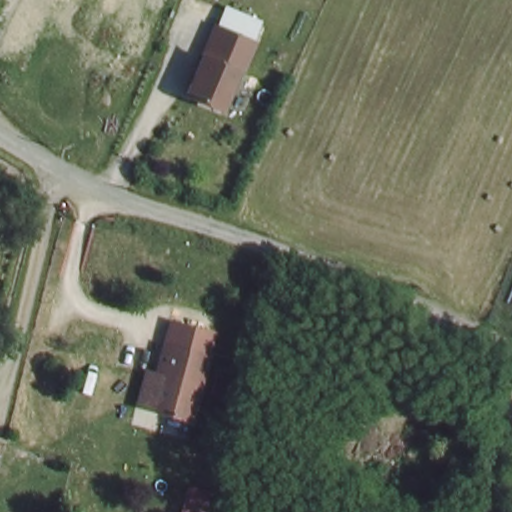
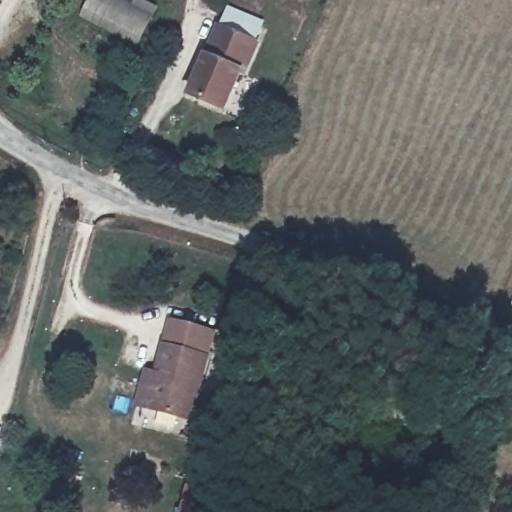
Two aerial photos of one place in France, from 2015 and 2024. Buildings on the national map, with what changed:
new [(87,0),(145,0),(159,7),(136,48),(78,16),(87,0)]
unchanged [(217,21),(256,36),(243,67),(239,65),(223,104),(188,90),(217,21)]
unchanged [(191,420),(150,410),(172,326),(213,335),(191,420)]

